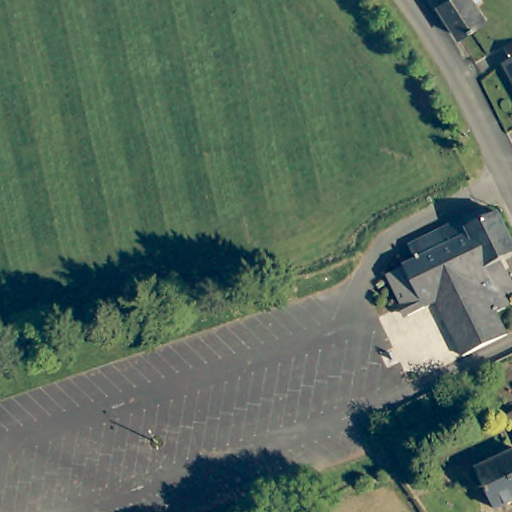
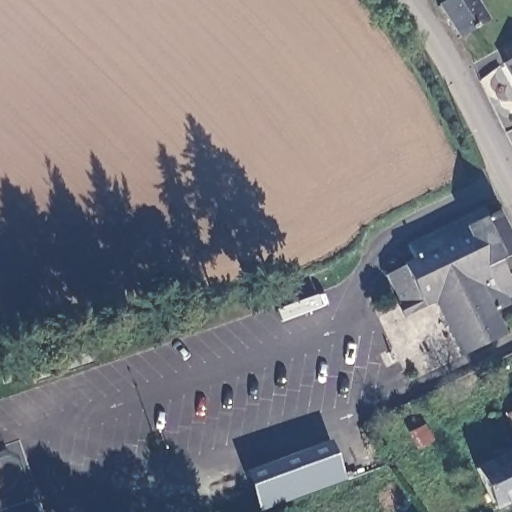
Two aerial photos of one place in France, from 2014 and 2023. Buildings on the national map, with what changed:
unchanged [(452,0),(476,0),(472,4),(486,23),(459,41),(436,11),(452,0)]
unchanged [(512,53),(512,82),(499,61),(512,53)]
unchanged [(384,275),(411,261),(402,243),(460,216),(465,226),(470,223),(465,213),(478,207),(483,217),(493,212),(512,249),(512,254),(497,261),(512,291),(512,295),(504,298),(508,305),(491,313),(502,335),(456,356),(429,302),(414,310),(404,316),(397,303),(384,275)]
unchanged [(512,405),(512,426),(503,409),(512,405)]
new [(330,440),(346,484),(262,512),(259,512),(245,471),(330,440)]
unchanged [(512,448),(512,494),(491,504),(472,467),(512,448)]

